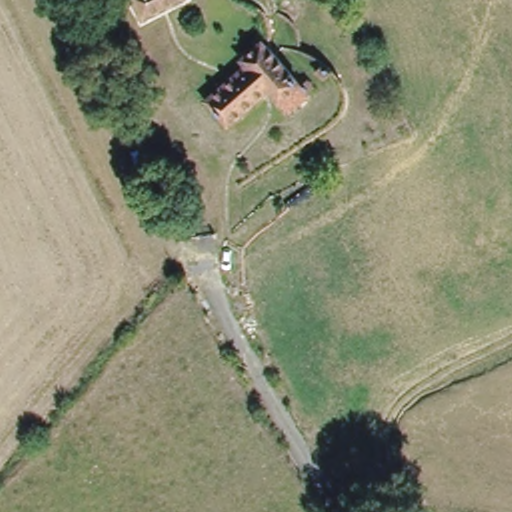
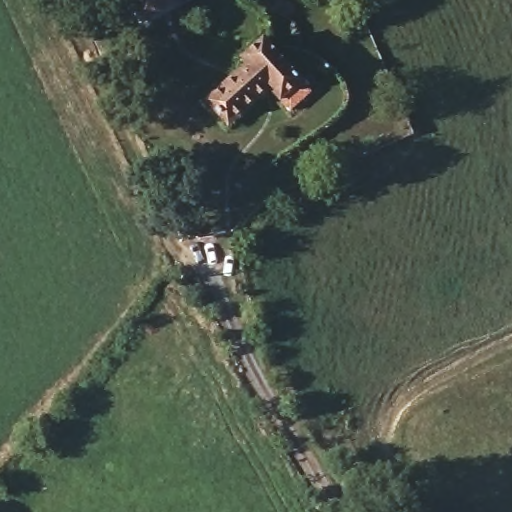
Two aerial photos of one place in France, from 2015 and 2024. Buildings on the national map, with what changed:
unchanged [(137,0),(165,0),(143,12),(137,0)]
unchanged [(285,109),(274,96),(263,85),(223,121),(198,95),(235,59),(231,53),(257,30),(295,73),(309,86),(285,109)]

